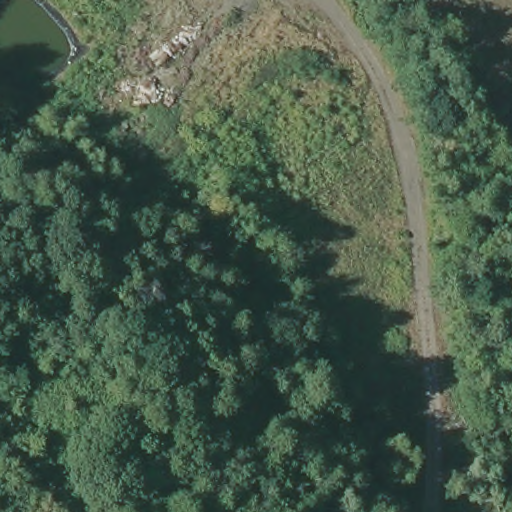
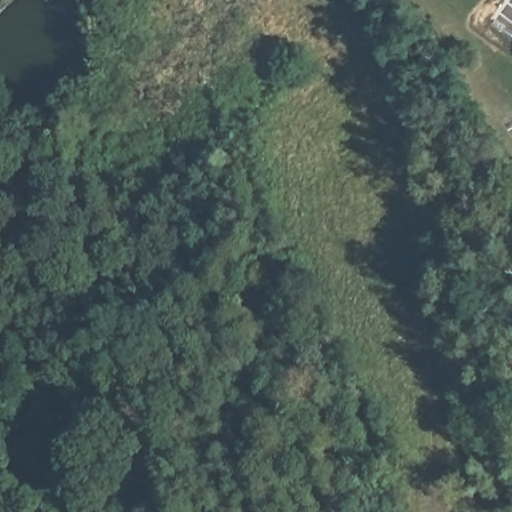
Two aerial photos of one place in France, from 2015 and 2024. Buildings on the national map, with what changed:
[]

